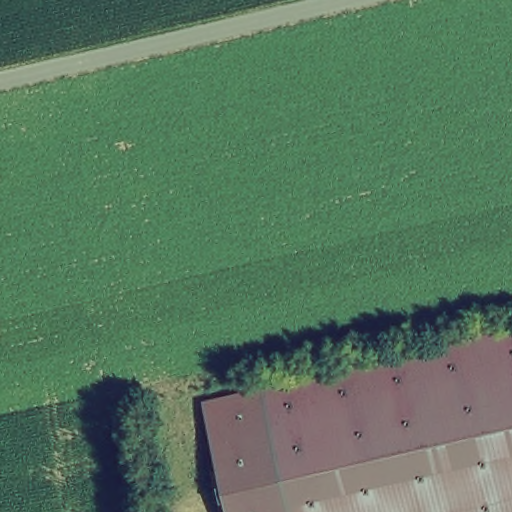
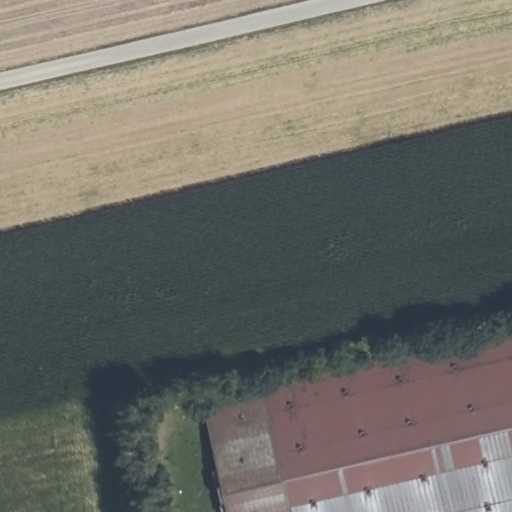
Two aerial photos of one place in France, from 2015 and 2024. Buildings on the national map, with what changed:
unchanged [(512,325),(512,512),(295,512),(265,382),(512,325)]
unchanged [(228,512),(204,400),(266,386),(295,512),(228,512)]

